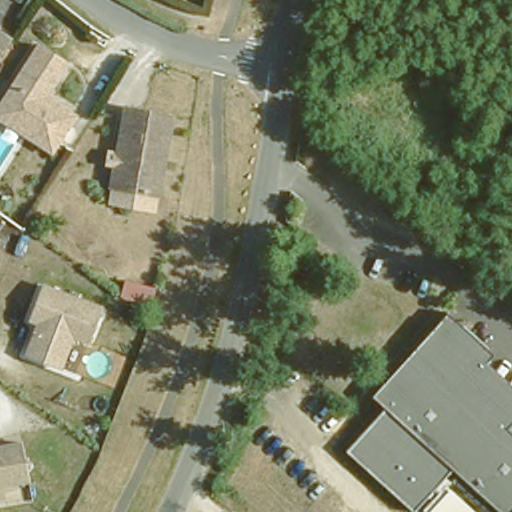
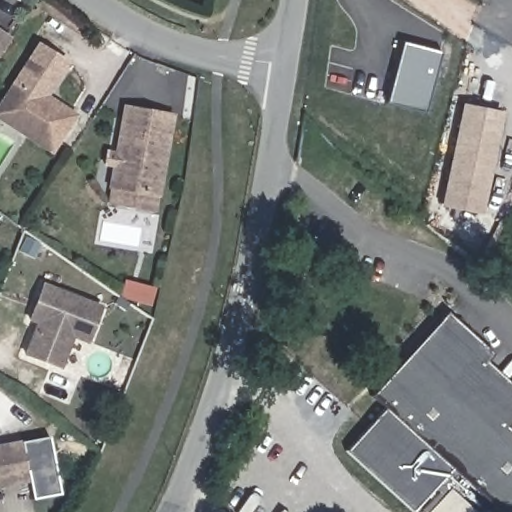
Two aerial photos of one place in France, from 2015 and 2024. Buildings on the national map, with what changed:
unchanged [(10,45),(0,60),(0,39),(10,45)]
new [(424,113),(387,103),(402,44),(440,54),(424,113)]
unchanged [(0,125),(0,110),(36,49),(66,66),(46,101),(42,105),(53,111),(56,107),(75,119),(60,145),(53,156),(0,125)]
new [(461,104),(502,112),(481,215),(440,207),(461,104)]
unchanged [(168,122),(154,202),(106,194),(120,114),(168,122)]
new [(153,305),(122,296),(127,279),(157,288),(153,305)]
unchanged [(105,310),(91,344),(76,338),(64,370),(30,356),(38,333),(44,333),(47,326),(34,321),(47,287),(105,310)]
unchanged [(484,368),(512,394),(512,421),(502,430),(512,440),(512,512),(492,512),(448,473),(379,411),(370,402),(445,319),(491,360),(484,368)]
unchanged [(415,512),(412,512),(343,451),(379,411),(448,473),(415,512)]
new [(26,448),(50,443),(60,494),(34,498),(32,485),(26,448)]
unchanged [(26,448),(32,485),(16,488),(0,491),(0,452),(26,448)]
new [(475,512),(429,512),(449,489),(475,512)]

